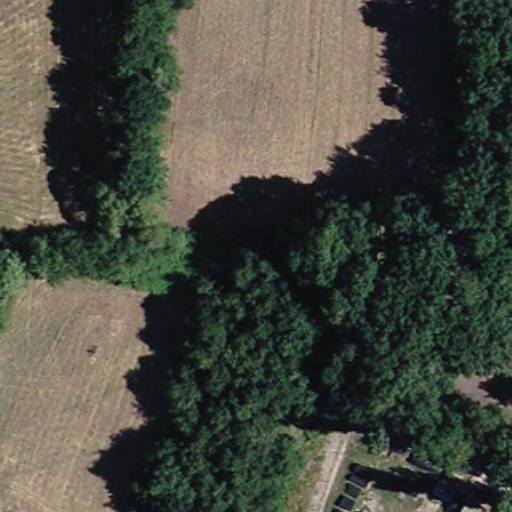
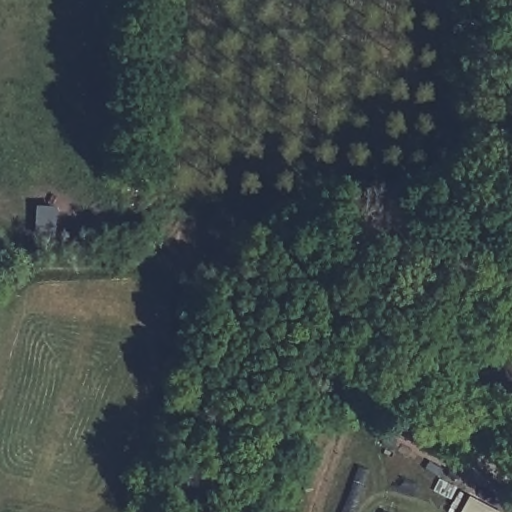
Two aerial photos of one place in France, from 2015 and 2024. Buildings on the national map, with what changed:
unchanged [(483,512),(454,512),(460,500),(483,512)]

